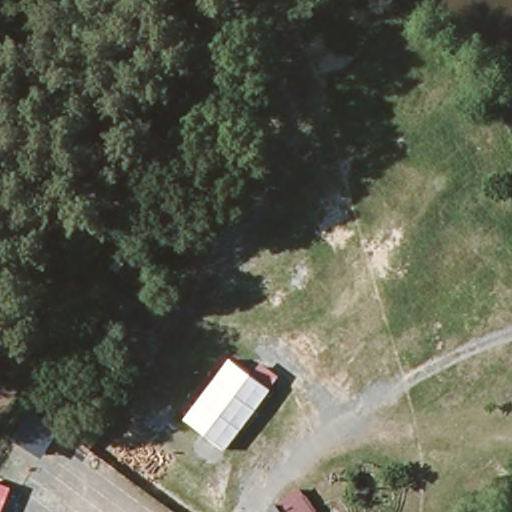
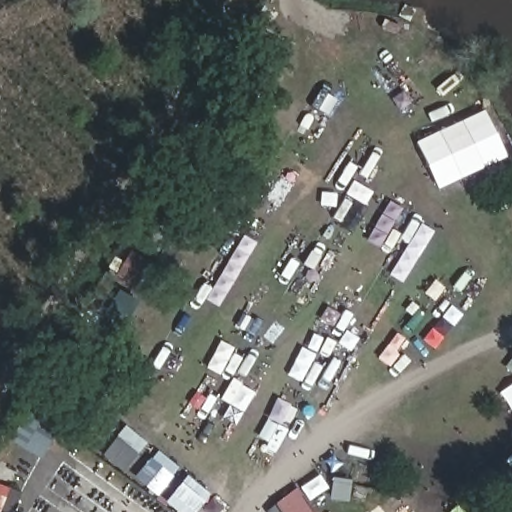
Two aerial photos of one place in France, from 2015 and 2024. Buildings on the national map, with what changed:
new [(419,142),(485,111),(506,157),(439,188),(419,142)]
demolished [(273,390),(228,452),(185,420),(231,358),(273,390)]
unchanged [(314,512),(270,512),(270,511),(298,490),(314,512)]

